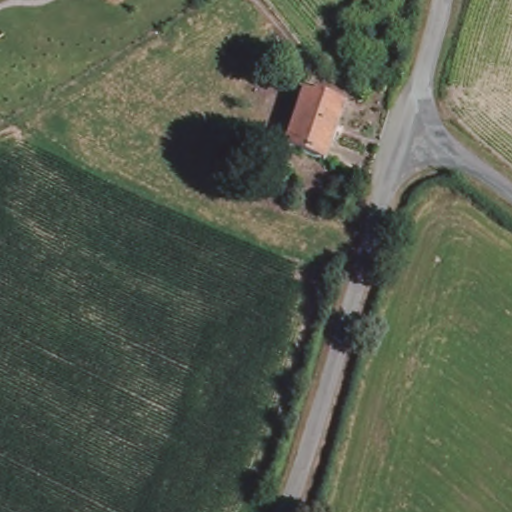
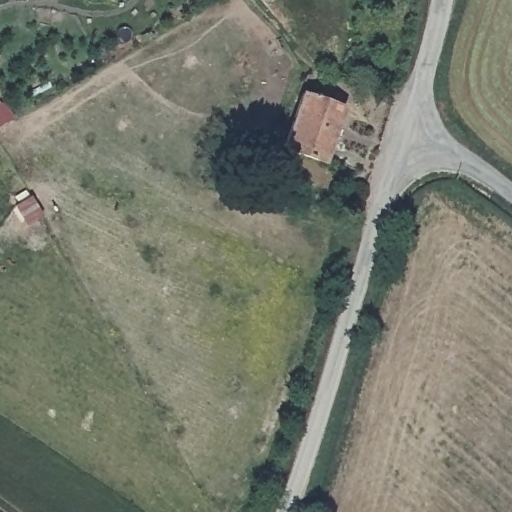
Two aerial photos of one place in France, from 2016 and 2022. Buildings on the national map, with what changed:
unchanged [(321,165),(282,150),(297,95),(342,110),(321,165)]

